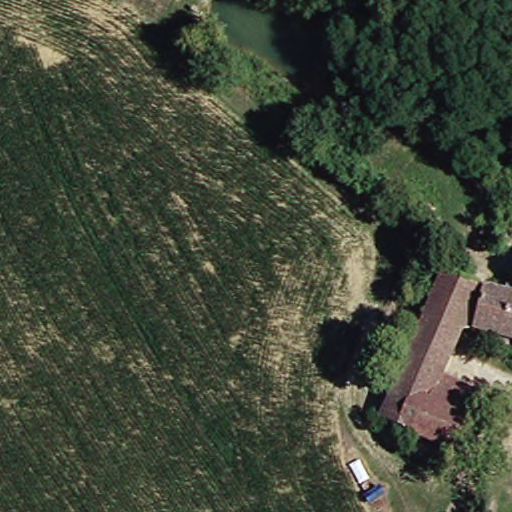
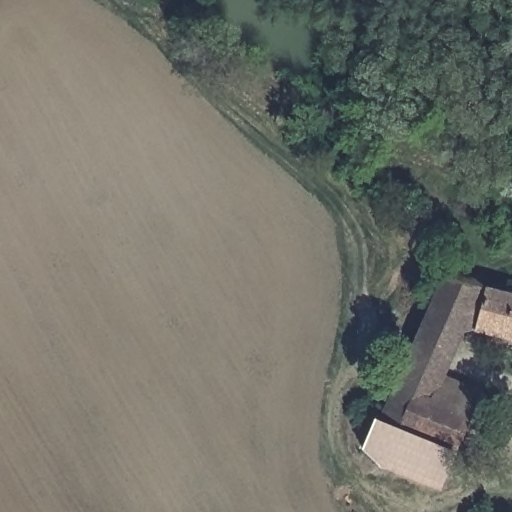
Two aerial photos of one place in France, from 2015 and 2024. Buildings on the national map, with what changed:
unchanged [(471,326),(435,314),(454,276),(491,286),(479,328),(471,326)]
unchanged [(479,328),(491,286),(512,292),(512,337),(479,328)]
unchanged [(445,381),(423,429),(388,413),(435,314),(471,326),(445,381)]
unchanged [(423,429),(445,381),(483,397),(459,450),(458,453),(421,437),(422,435),(423,429)]
new [(379,468),(361,447),(373,416),(384,421),(388,413),(423,429),(422,435),(421,437),(456,453),(441,491),(379,468)]

